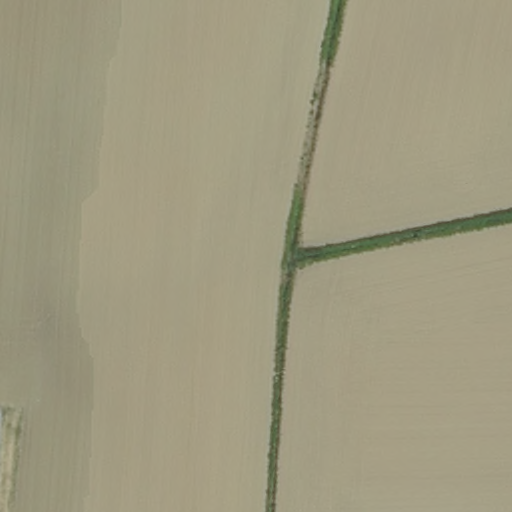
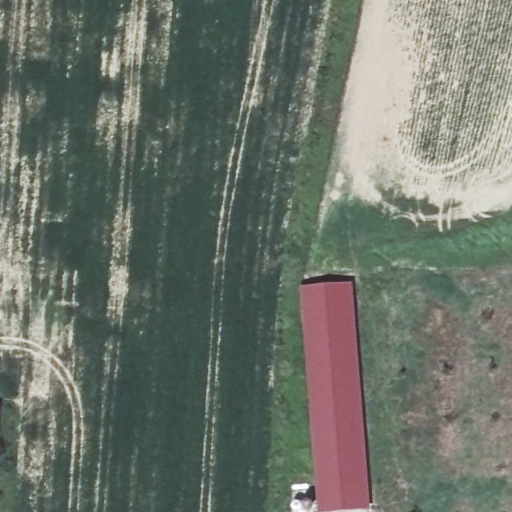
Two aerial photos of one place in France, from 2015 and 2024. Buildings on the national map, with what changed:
new [(352,284),(370,511),(349,512),(316,512),(299,289),(352,284)]

